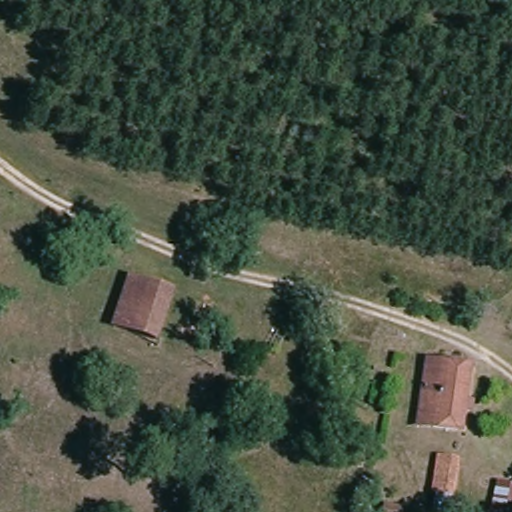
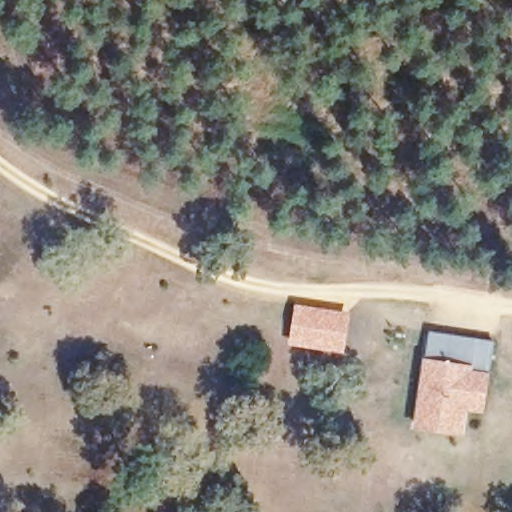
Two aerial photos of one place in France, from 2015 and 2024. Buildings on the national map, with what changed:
demolished [(157,342),(116,321),(135,272),(177,294),(157,342)]
new [(294,303),(350,311),(344,353),(287,344),(294,303)]
unchanged [(465,432),(418,427),(425,351),(473,356),(465,432)]
demolished [(512,482),(512,512),(493,512),(496,480),(512,482)]

